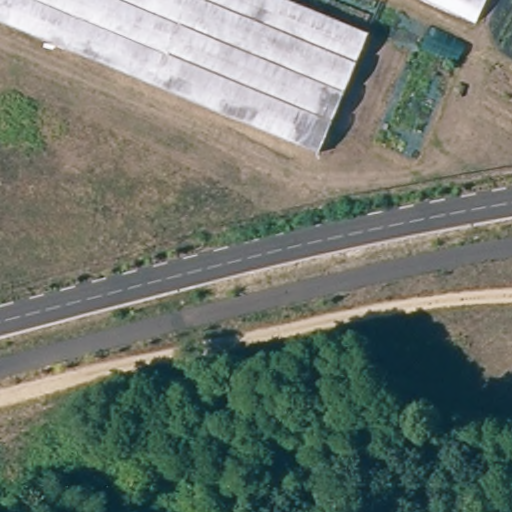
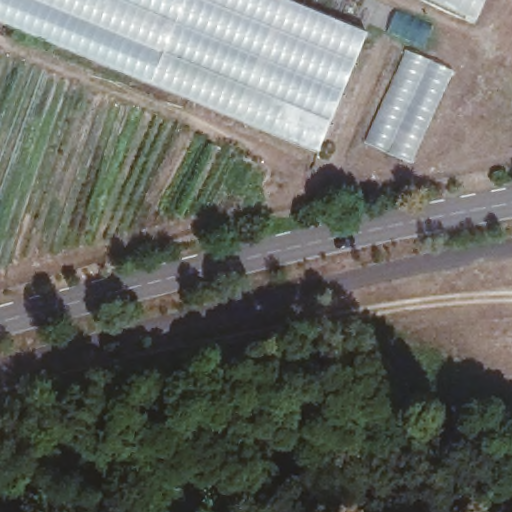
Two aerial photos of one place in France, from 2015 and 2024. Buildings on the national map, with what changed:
unchanged [(316,154),(0,19),(0,0),(283,0),(367,35),(316,154)]
unchanged [(442,0),(493,0),(483,20),(442,0)]
new [(451,70),(411,164),(367,145),(407,51),(451,70)]

